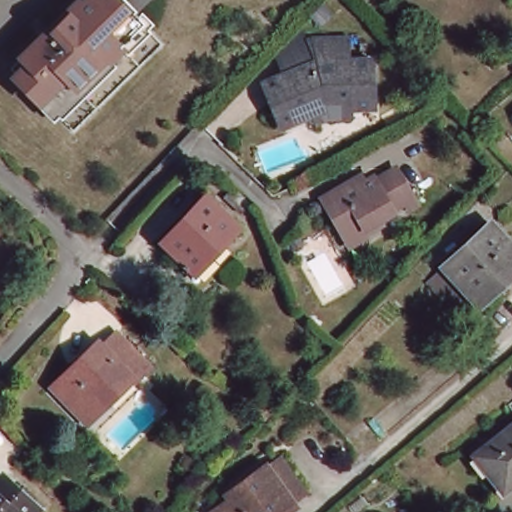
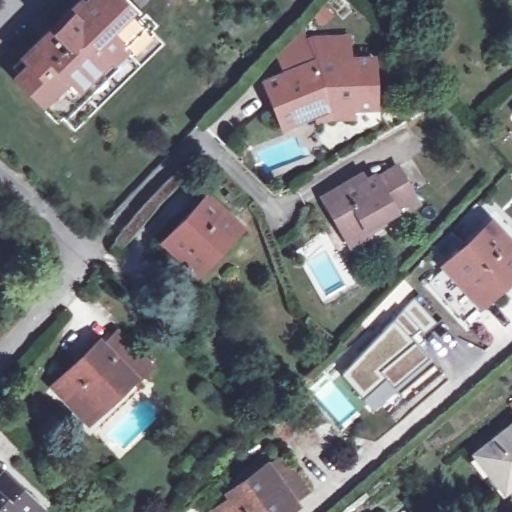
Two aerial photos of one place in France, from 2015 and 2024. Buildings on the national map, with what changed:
unchanged [(128,1),(125,4),(153,32),(65,120),(33,88),(30,92),(4,66),(7,63),(1,57),(41,17),(44,20),(50,15),(47,11),(59,0),(127,0),(128,1)]
unchanged [(318,123),(314,114),(286,126),(268,81),(286,74),(277,52),(307,41),(331,39),(348,38),(348,60),(370,59),(373,109),(349,111),(349,117),(331,118),(318,123)]
unchanged [(348,245),(344,238),(322,197),(349,182),(351,185),(363,179),(365,182),(375,176),(377,179),(399,167),(415,196),(420,204),(413,208),(408,200),(394,208),(396,211),(364,228),(367,235),(348,245)]
unchanged [(238,226),(194,273),(163,242),(206,195),(238,226)]
unchanged [(455,263),(453,260),(500,218),(512,232),(512,279),(472,315),(439,278),(455,263)]
new [(360,398),(339,374),(389,322),(415,297),(438,321),(417,342),(436,364),(399,393),(375,414),(360,398)]
unchanged [(94,347),(99,351),(112,337),(146,371),(145,371),(132,384),(126,378),(82,422),(50,390),(94,347)]
unchanged [(477,454),(512,427),(512,482),(503,489),(497,482),(477,454)]
unchanged [(208,512),(219,504),(217,500),(255,472),(270,460),(296,495),(281,507),(282,509),(278,512),(208,512)]
unchanged [(14,483),(43,512),(0,512),(0,497),(14,483)]

